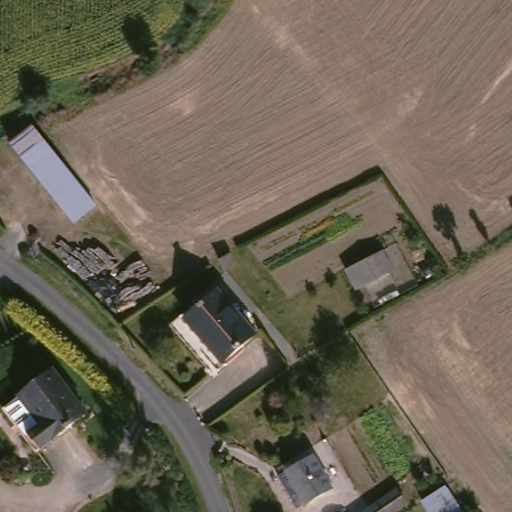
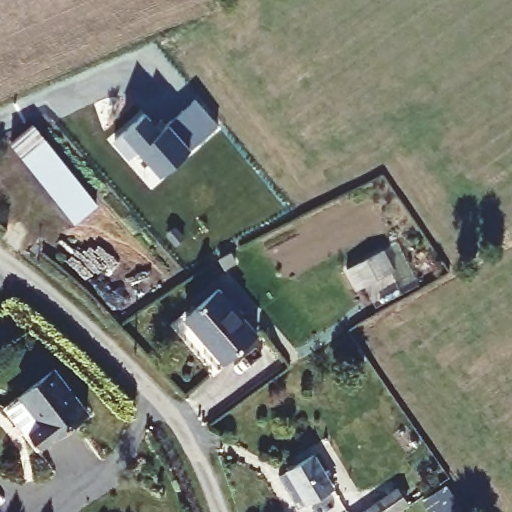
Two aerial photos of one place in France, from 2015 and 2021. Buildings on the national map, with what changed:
new [(219,126),(191,149),(161,177),(137,150),(128,159),(112,140),(122,131),(144,112),(160,129),(169,121),(195,99),(219,126)]
unchanged [(76,222),(31,159),(18,141),(41,126),(54,144),(98,208),(76,222)]
new [(396,272),(356,292),(345,269),(384,249),(396,272)]
demolished [(379,259),(391,281),(372,289),(360,268),(379,259)]
unchanged [(222,286),(258,332),(225,357),(189,310),(222,286)]
unchanged [(82,418),(42,446),(30,429),(40,421),(20,392),(50,372),(82,418)]
unchanged [(316,455),(334,489),(309,502),(292,469),(316,455)]
unchanged [(468,512),(432,512),(424,501),(450,484),(468,512)]
unchanged [(410,490),(418,502),(402,512),(376,512),(410,490)]

